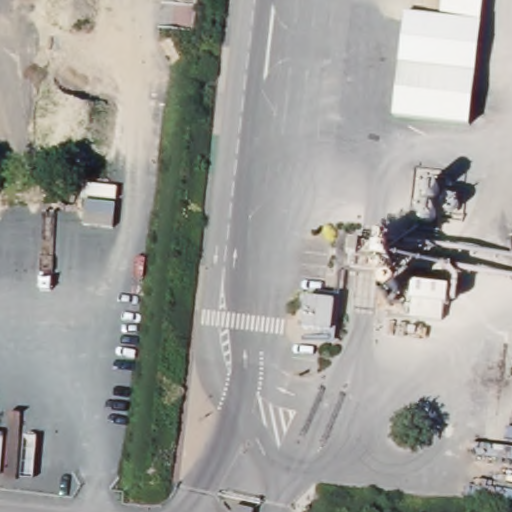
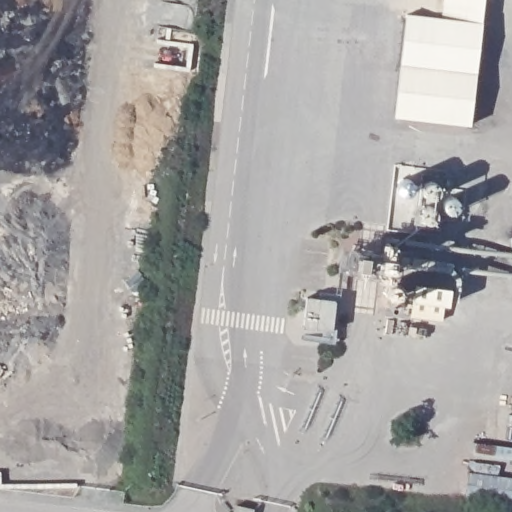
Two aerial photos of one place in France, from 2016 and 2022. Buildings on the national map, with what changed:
unchanged [(396,117),(408,12),(442,18),(444,0),(485,0),(472,127),(396,117)]
unchanged [(336,303),(333,337),(301,332),(305,299),(336,303)]

